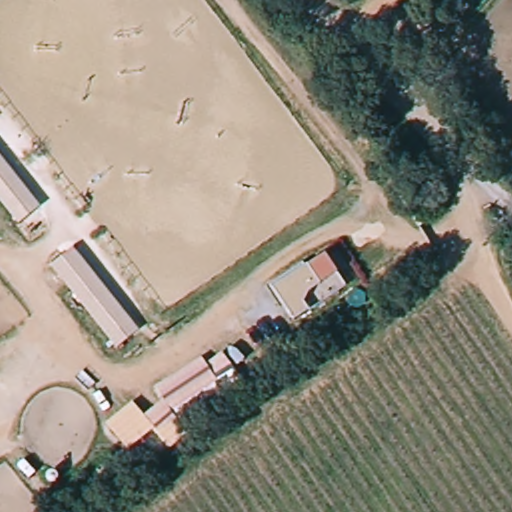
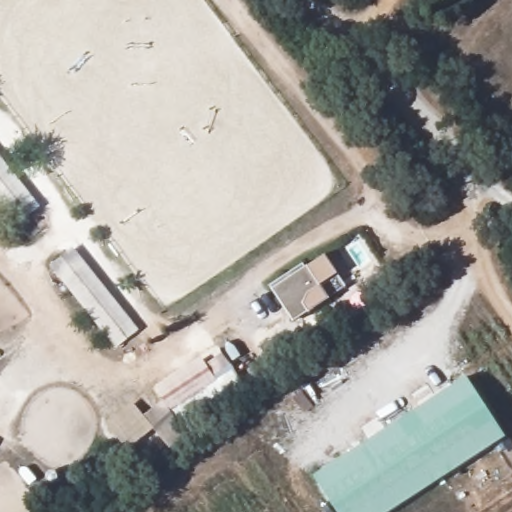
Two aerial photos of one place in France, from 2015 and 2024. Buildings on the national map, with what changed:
unchanged [(0,191),(0,163),(36,207),(22,218),(0,191)]
unchanged [(116,348),(51,264),(72,244),(138,329),(116,348)]
unchanged [(302,262),(307,267),(325,253),(346,286),(294,322),(269,285),(302,262)]
unchanged [(163,401),(155,389),(203,357),(207,363),(221,351),(244,387),(170,449),(154,430),(129,450),(124,443),(149,422),(143,416),(163,401)]
new [(387,512),(337,512),(313,475),(467,375),(505,435),(387,512)]
unchanged [(130,401),(137,408),(149,422),(124,443),(106,421),(130,401)]

